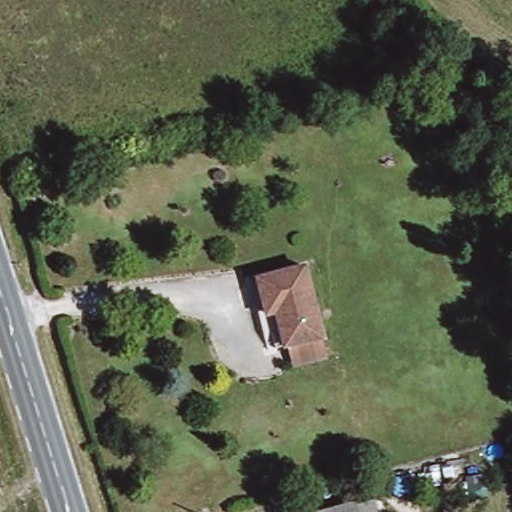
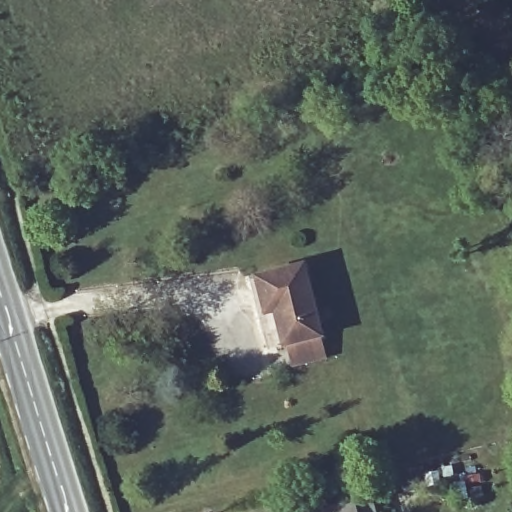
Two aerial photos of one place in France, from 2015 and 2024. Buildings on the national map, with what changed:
unchanged [(268,313),(257,274),(304,261),(323,331),(286,342),(278,311),(268,313)]
unchanged [(374,496),(379,512),(360,512),(357,501),(374,496)]
unchanged [(360,512),(321,512),(357,501),(360,512)]

